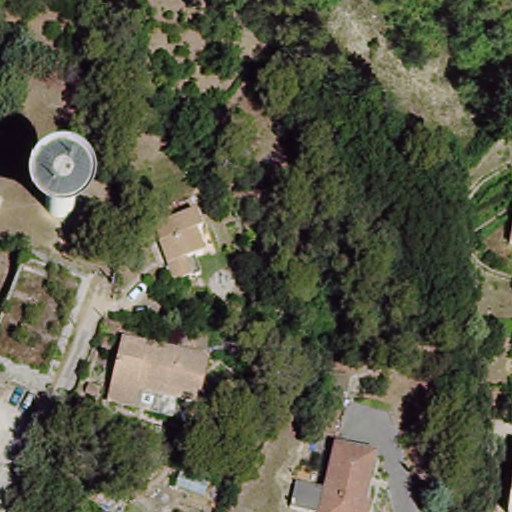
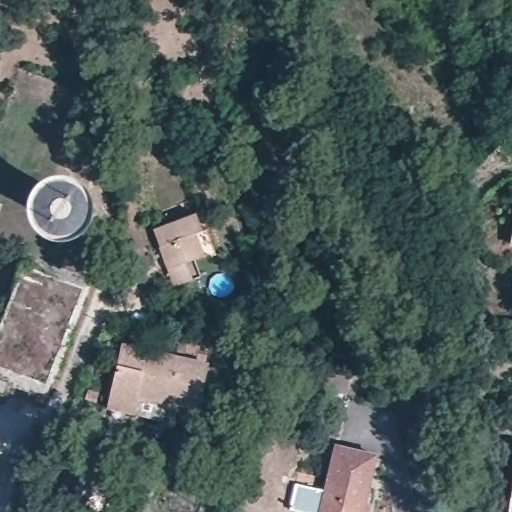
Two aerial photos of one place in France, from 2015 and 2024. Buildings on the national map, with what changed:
unchanged [(209,272),(179,282),(160,225),(204,209),(211,228),(220,253),(210,256),(204,258),(209,272)]
unchanged [(512,223),(512,245),(507,244),(512,223)]
unchanged [(192,361),(197,344),(212,349),(209,373),(213,374),(201,411),(139,390),(133,407),(106,397),(126,335),(192,361)]
unchanged [(380,449),(364,512),(320,512),(341,439),(380,449)]
unchanged [(512,458),(512,512),(504,512),(512,458)]

